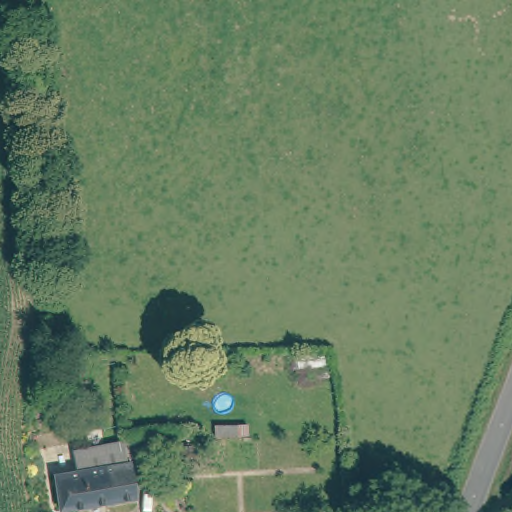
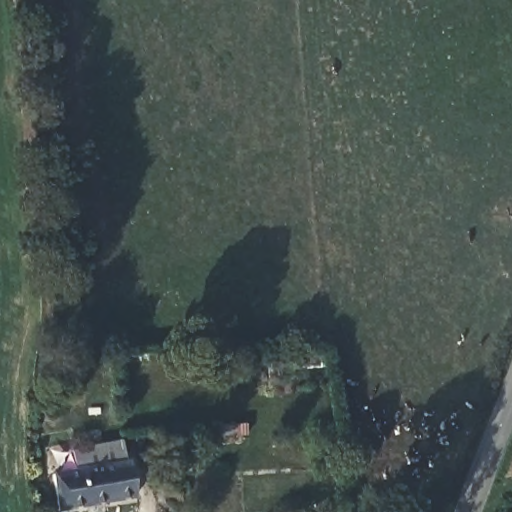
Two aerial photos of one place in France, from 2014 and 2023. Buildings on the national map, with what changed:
unchanged [(75,465),(71,438),(133,431),(136,456),(75,465)]
unchanged [(136,456),(139,456),(144,499),(71,507),(66,466),(75,465),(136,456)]

